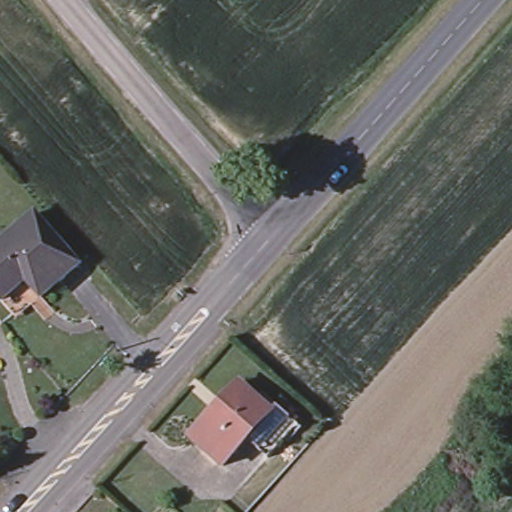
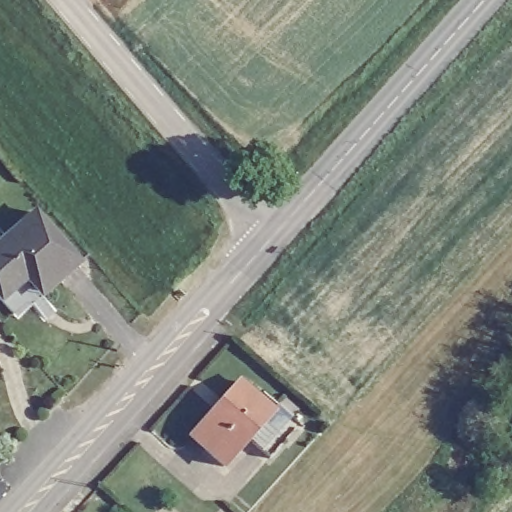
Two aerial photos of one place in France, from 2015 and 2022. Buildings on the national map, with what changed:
unchanged [(32,202),(79,255),(60,271),(56,266),(14,303),(0,287),(0,230),(32,202)]
unchanged [(263,453),(243,435),(220,460),(185,426),(232,376),(249,391),(255,384),(273,401),(295,420),(263,453)]

